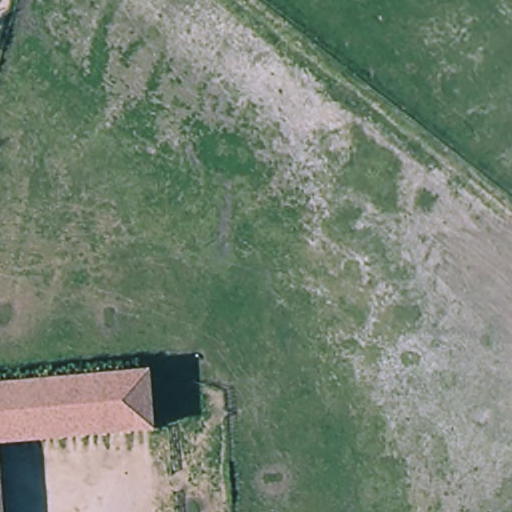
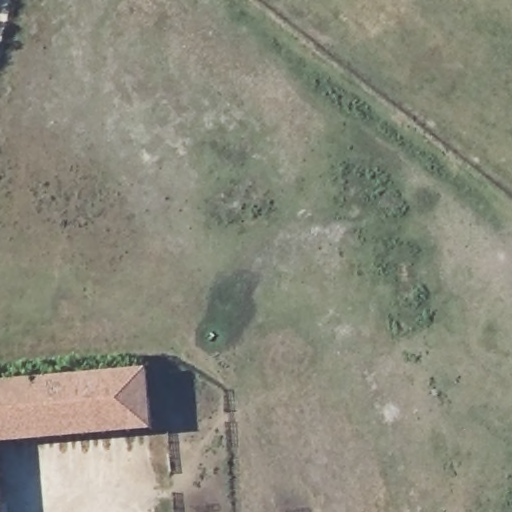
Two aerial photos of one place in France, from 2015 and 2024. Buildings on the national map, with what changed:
unchanged [(151,427),(0,449),(0,391),(187,363),(206,512),(163,512),(151,427)]
unchanged [(4,512),(0,512),(0,476),(4,512)]

